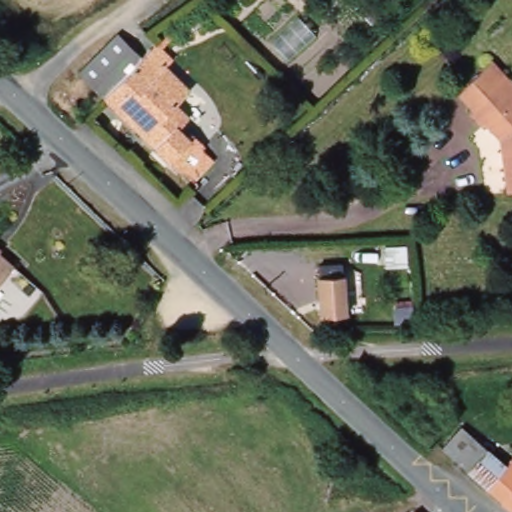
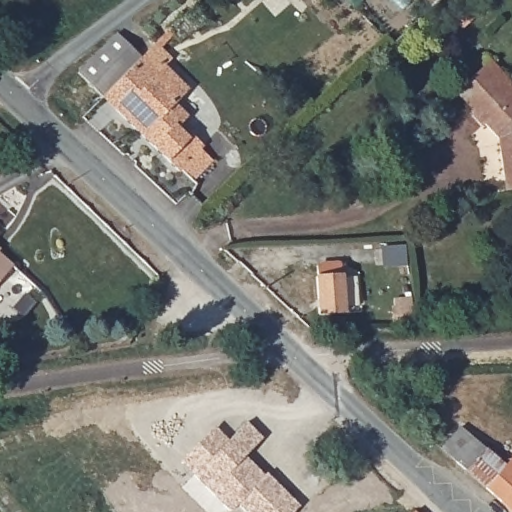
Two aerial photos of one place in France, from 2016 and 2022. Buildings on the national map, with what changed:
unchanged [(102,97),(79,73),(117,34),(142,57),(102,97)]
unchanged [(175,104),(189,116),(178,127),(187,137),(191,133),(204,145),(180,171),(102,97),(142,57),(147,52),(155,44),(172,59),(165,65),(190,90),(175,104)]
unchanged [(511,191),(504,139),(490,124),(487,126),(473,112),(476,109),(461,92),(496,60),(512,77),(512,191),(511,191)]
unchanged [(0,287),(0,250),(19,266),(0,287)]
unchanged [(350,318),(325,320),(322,281),(323,281),(322,270),(345,269),(345,279),(347,279),(350,318)]
new [(265,437),(248,455),(264,473),(267,471),(301,505),(295,512),(245,512),(239,505),(232,512),(230,512),(194,475),(247,420),(265,437)]
unchanged [(490,487),(470,470),(447,448),(466,426),(490,448),(510,466),(510,465),(512,463),(512,507),(490,487)]
unchanged [(421,512),(420,512),(420,511),(421,512)]

